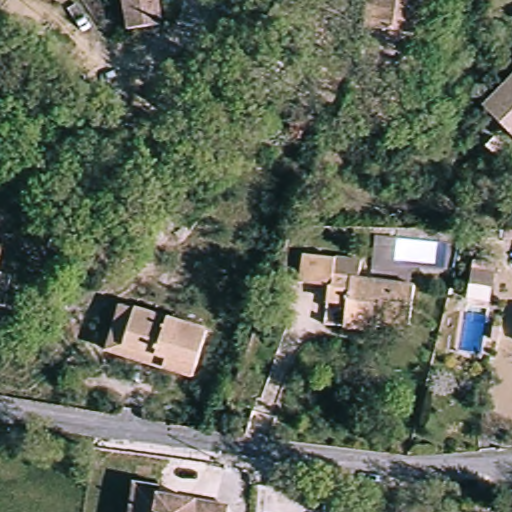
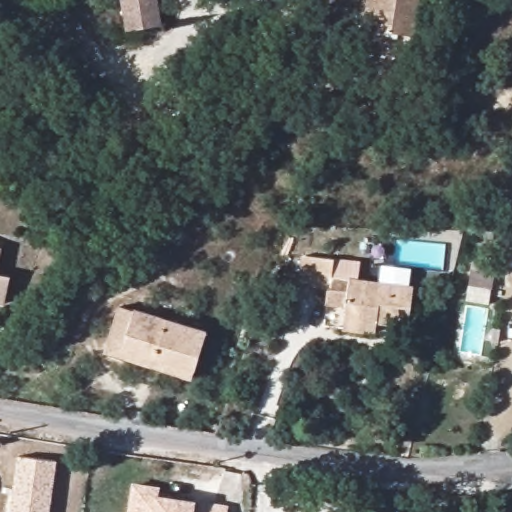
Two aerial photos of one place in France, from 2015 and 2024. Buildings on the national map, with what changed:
unchanged [(124,31),(120,0),(157,0),(158,28),(124,31)]
unchanged [(358,31),(364,0),(413,0),(404,41),(358,31)]
demolished [(503,136),(476,108),(512,72),(512,127),(503,136)]
unchanged [(339,333),(341,319),(345,285),(326,283),(325,292),(296,289),(299,262),(352,267),(351,282),(405,287),(401,326),(374,323),(373,336),(339,333)]
unchanged [(483,306),(461,302),(468,265),(491,267),(483,306)]
unchanged [(0,291),(0,277),(3,278),(0,291)]
unchanged [(116,309),(131,314),(120,352),(193,374),(189,384),(101,356),(116,309)]
unchanged [(120,352),(131,314),(204,338),(193,374),(120,352)]
new [(57,462),(50,512),(9,512),(18,456),(57,462)]
unchanged [(220,512),(124,512),(128,487),(153,491),(151,500),(220,511),(220,512)]

